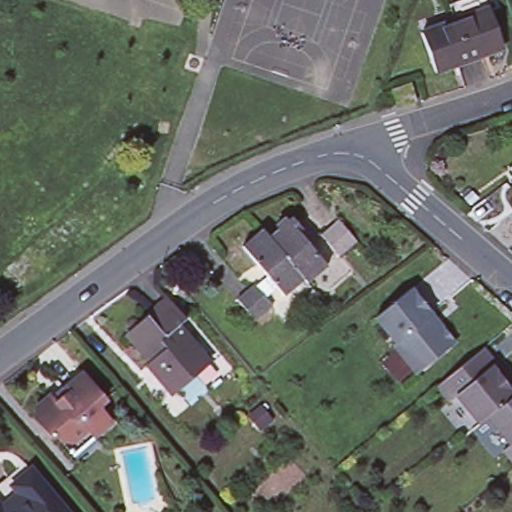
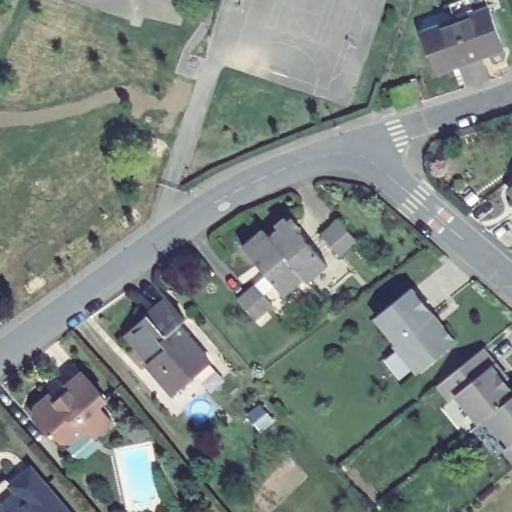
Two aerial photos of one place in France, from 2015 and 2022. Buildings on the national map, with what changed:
unchanged [(422,34),(455,22),(450,6),(468,0),(486,0),(490,9),(504,47),(470,60),(436,72),(422,34)]
unchanged [(410,84),(416,101),(399,107),(394,89),(410,84)]
unchanged [(512,186),(512,191),(510,187),(512,186)]
unchanged [(327,260),(307,278),(304,274),(269,232),(289,215),(327,260)]
unchanged [(339,215),(357,236),(339,251),(322,230),(339,215)]
unchanged [(284,291),(277,282),(267,272),(245,245),(266,228),(269,232),(304,274),(284,291)]
unchanged [(272,301),(255,315),(237,294),(255,279),(257,281),(265,292),(272,301)]
unchanged [(452,346),(417,373),(394,345),(396,343),(375,317),(411,289),(432,315),(443,328),(452,339),(452,346)]
unchanged [(190,400),(177,385),(172,389),(158,373),(159,367),(161,365),(154,356),(149,356),(127,330),(149,311),(147,310),(154,304),(167,293),(185,315),(179,320),(210,357),(195,370),(209,385),(190,400)]
unchanged [(455,395),(443,380),(488,344),(502,361),(512,372),(508,375),(512,381),(512,396),(477,424),(469,431),(446,403),(455,395)]
unchanged [(41,402),(56,389),(62,396),(72,387),(69,384),(88,367),(110,394),(103,400),(117,417),(100,432),(93,424),(78,437),(65,436),(60,430),(57,433),(40,413),(41,402)]
unchanged [(500,452),(477,424),(512,396),(512,449),(509,445),(500,452)]
unchanged [(34,462),(76,512),(0,512),(0,491),(34,462)]

